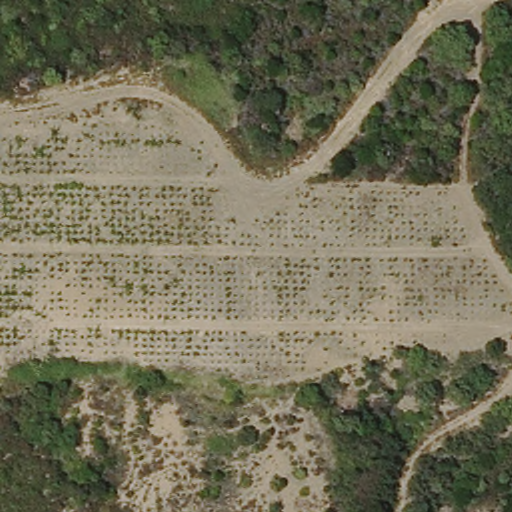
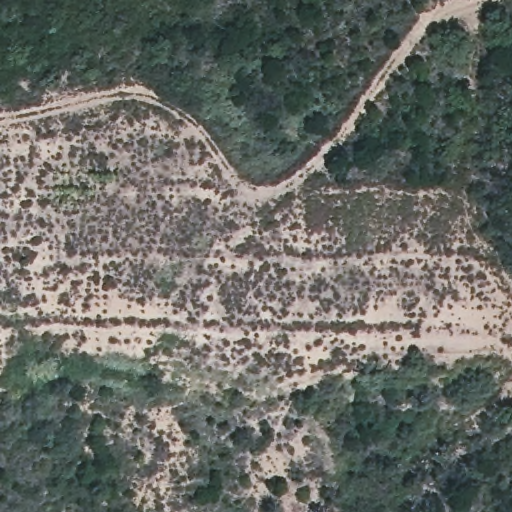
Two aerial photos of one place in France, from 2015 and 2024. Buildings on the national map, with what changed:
[]

